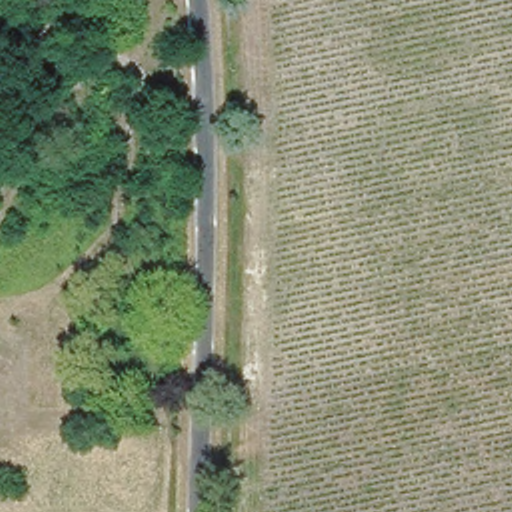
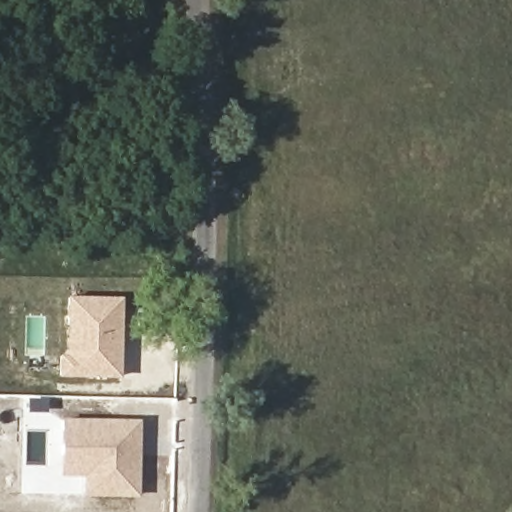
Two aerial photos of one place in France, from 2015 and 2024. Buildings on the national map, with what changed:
new [(121,379),(66,376),(68,296),(123,297),(121,379)]
new [(84,477),(61,476),(61,419),(141,421),(140,494),(86,494),(84,477)]

